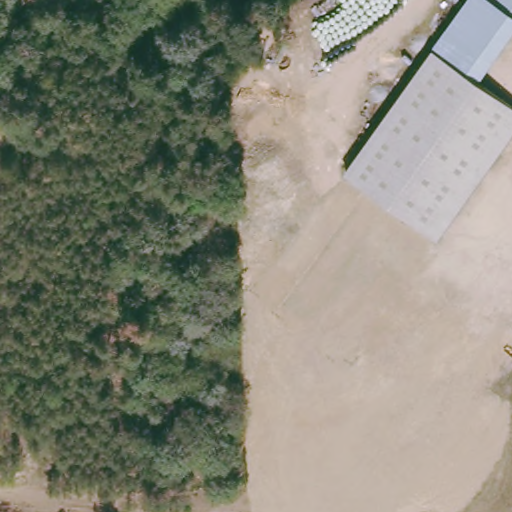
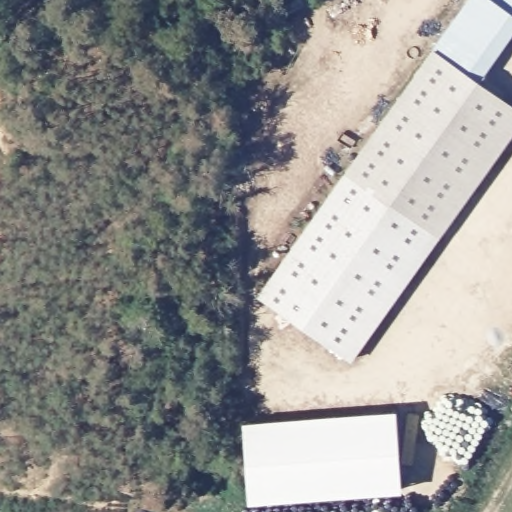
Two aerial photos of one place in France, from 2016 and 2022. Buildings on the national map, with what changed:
unchanged [(512,0),(512,23),(473,77),(432,49),(467,0),(512,0)]
unchanged [(347,171),(431,51),(432,49),(473,77),(512,104),(512,130),(437,236),(432,232),(347,171)]
new [(352,360),(258,296),(347,171),(432,232),(437,236),(352,360)]
new [(402,489),(248,501),(242,421),(396,410),(402,489)]

